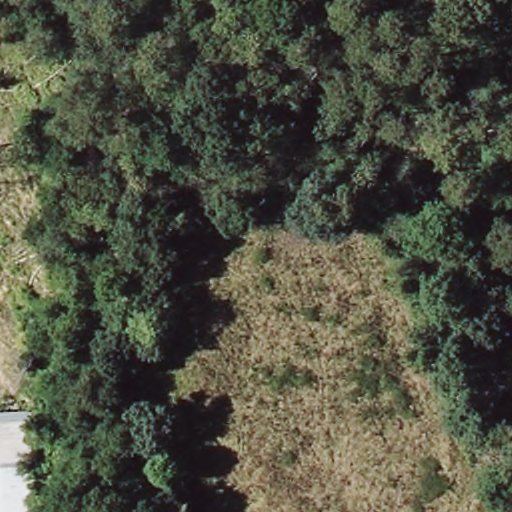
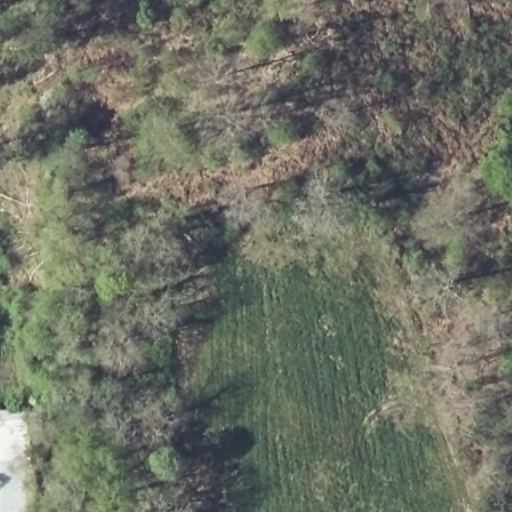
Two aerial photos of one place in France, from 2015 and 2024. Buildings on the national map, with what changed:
unchanged [(30,459),(37,459),(38,512),(0,512),(0,409),(29,407),(30,459)]

